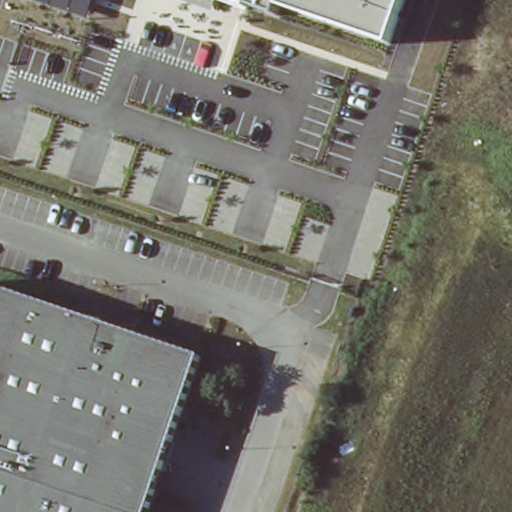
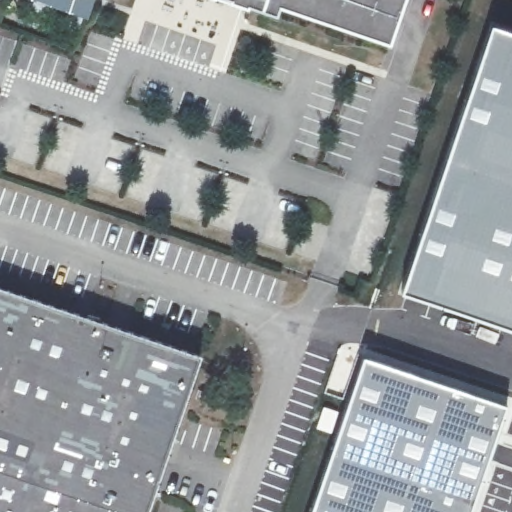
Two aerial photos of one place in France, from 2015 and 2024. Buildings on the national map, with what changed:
unchanged [(36,0),(94,0),(91,16),(36,0)]
unchanged [(189,0),(223,0),(217,10),(189,0)]
unchanged [(272,14),(229,0),(404,0),(390,43),(276,8),(272,14)]
new [(512,30),(512,333),(454,311),(399,293),(491,23),(512,30)]
unchanged [(201,356),(173,439),(0,380),(0,288),(201,356)]
new [(335,434),(316,428),(323,405),(343,411),(361,354),(508,403),(489,462),(472,512),(309,512),(335,434)]
unchanged [(173,439),(148,512),(0,512),(0,380),(173,439)]

